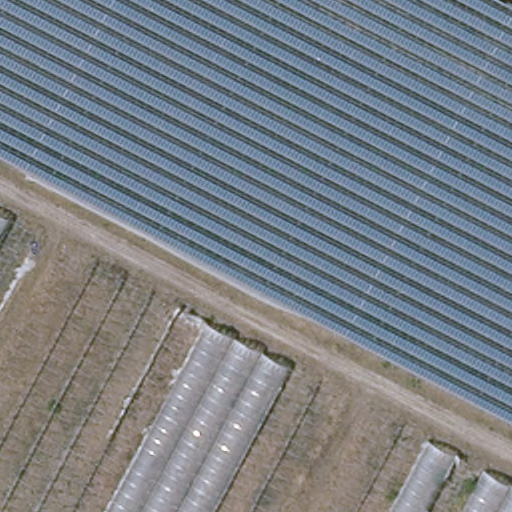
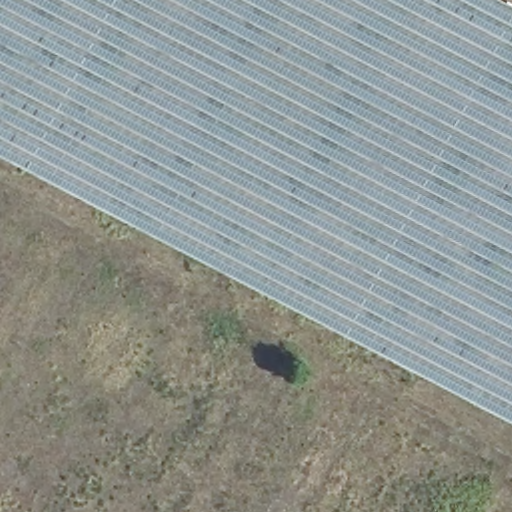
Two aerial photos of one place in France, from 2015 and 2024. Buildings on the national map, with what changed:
unchanged [(0,154),(0,0),(499,0),(512,7),(512,419),(0,154)]
demolished [(0,301),(0,215),(36,236),(0,301)]
demolished [(207,512),(65,512),(179,310),(285,369),(207,512)]
demolished [(388,512),(426,441),(512,486),(512,512),(388,512)]

